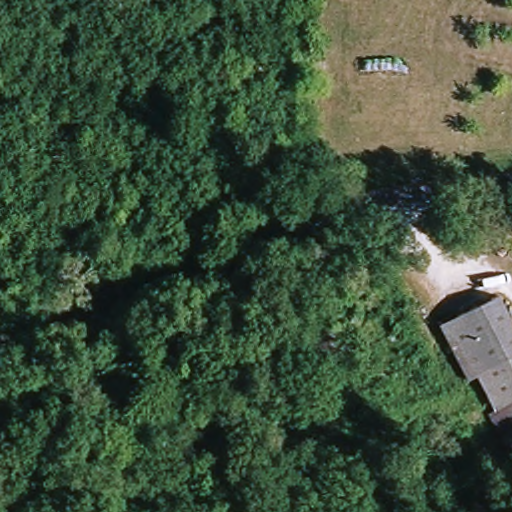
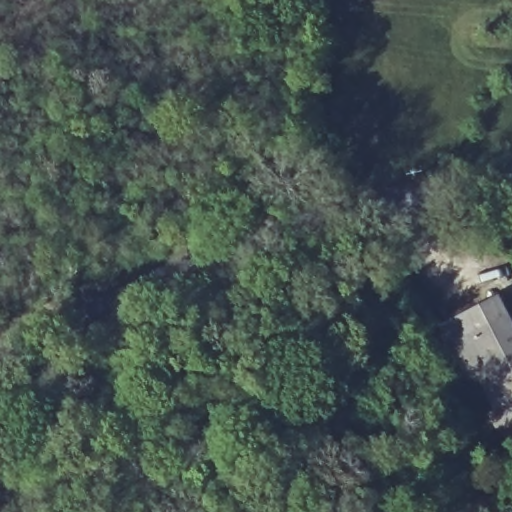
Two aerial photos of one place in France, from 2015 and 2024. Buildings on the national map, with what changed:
unchanged [(482,382),(449,330),(503,295),(512,309),(512,403),(508,405),(491,376),(482,382)]

